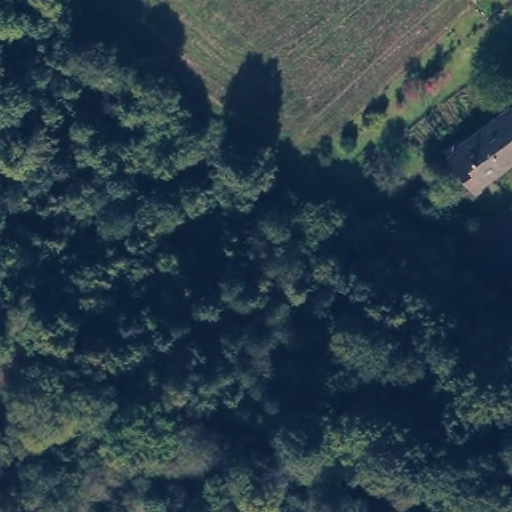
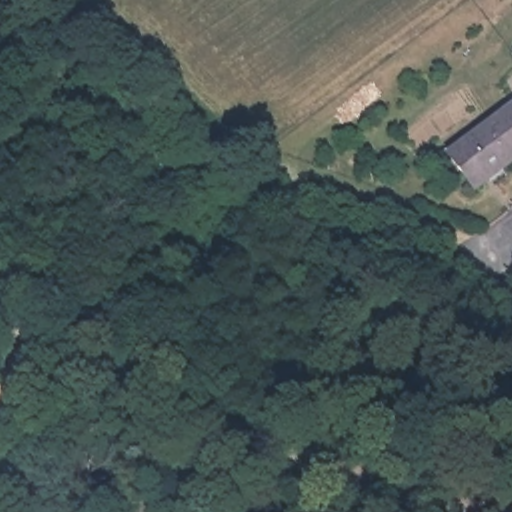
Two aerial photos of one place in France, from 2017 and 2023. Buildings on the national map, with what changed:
unchanged [(512,99),(512,154),(477,179),(452,144),(512,99)]

